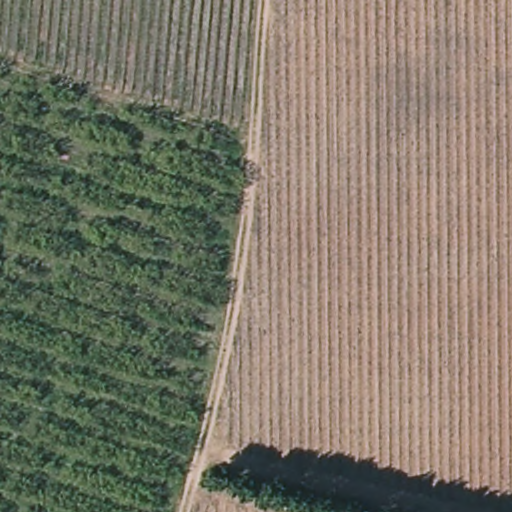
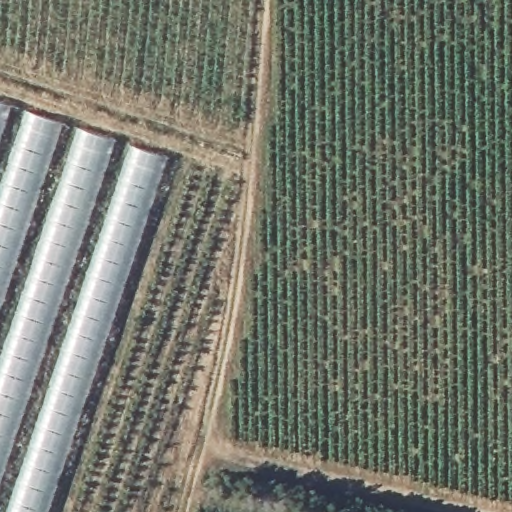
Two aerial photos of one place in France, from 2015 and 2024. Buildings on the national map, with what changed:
new [(49,512),(0,512),(0,102),(168,158),(49,512)]

